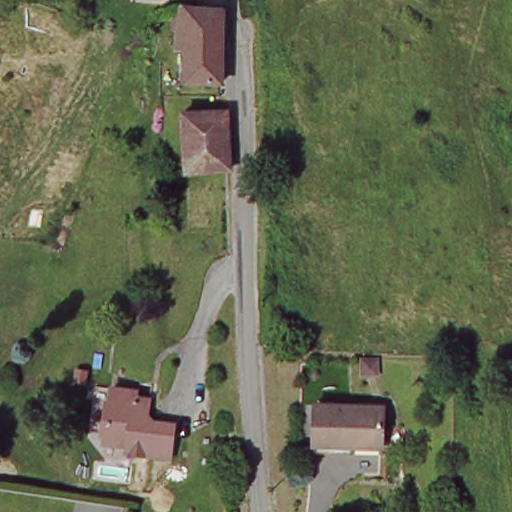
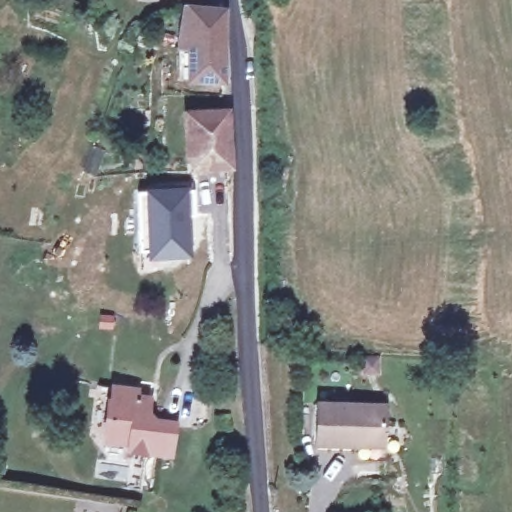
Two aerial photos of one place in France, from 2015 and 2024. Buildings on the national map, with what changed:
unchanged [(87,2),(79,0),(87,0),(87,2)]
unchanged [(190,79),(191,42),(182,41),(185,22),(176,21),(176,4),(225,10),(223,25),(220,80),(190,79)]
unchanged [(230,164),(182,165),(182,113),(227,112),(230,164)]
new [(143,195),(200,191),(200,217),(193,219),(195,251),(145,254),(143,195)]
unchanged [(135,391),(134,400),(148,401),(145,423),(172,426),(170,457),(126,453),(127,444),(113,442),(105,428),(109,387),(135,391)]
unchanged [(383,405),(382,448),(311,446),(312,403),(383,405)]

